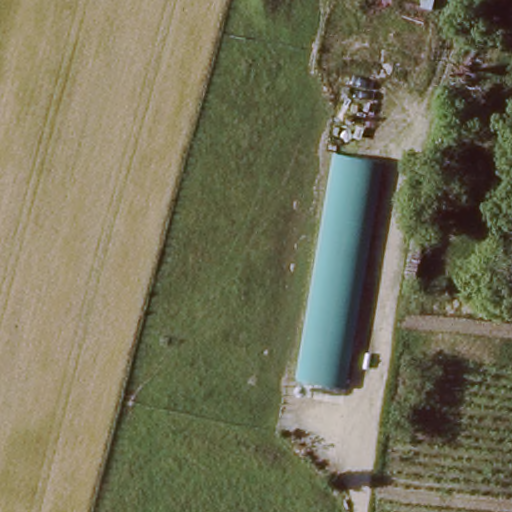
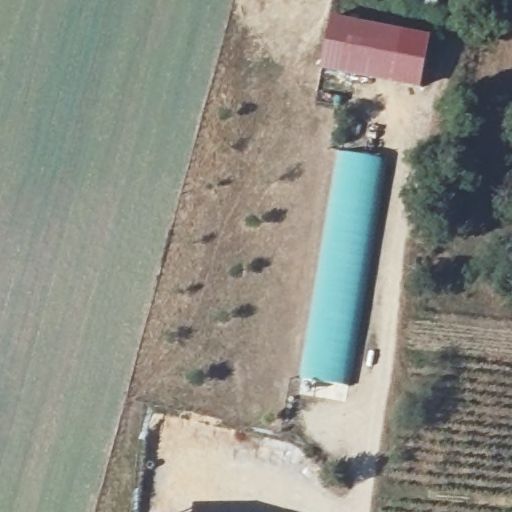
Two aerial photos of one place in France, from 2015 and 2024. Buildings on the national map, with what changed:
new [(347,74),(322,70),(331,17),(357,22),(347,74)]
new [(422,89),(347,74),(357,22),(430,36),(422,89)]
unchanged [(310,378),(345,154),(381,159),(350,385),(310,378)]

